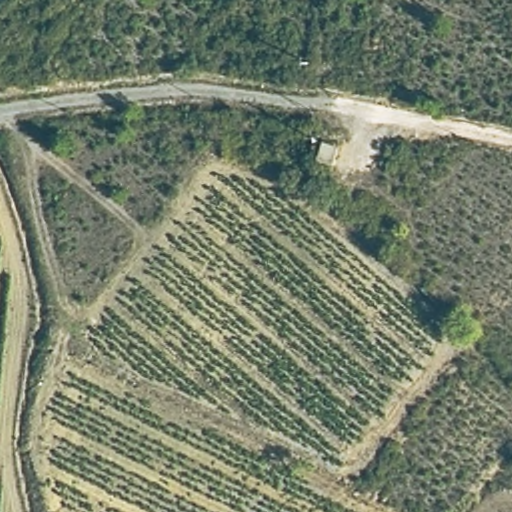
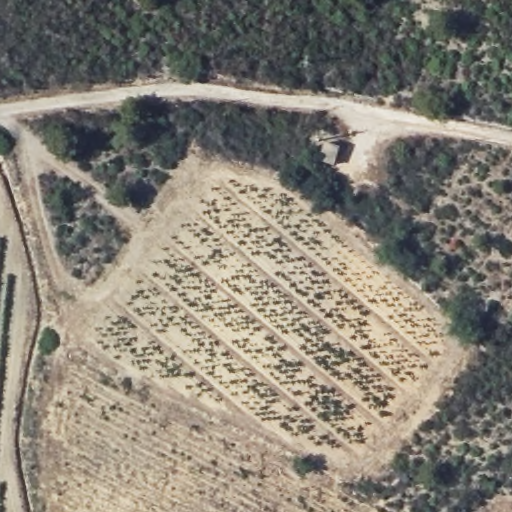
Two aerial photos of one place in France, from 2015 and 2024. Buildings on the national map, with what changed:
unchanged [(327,166),(310,160),(317,132),(335,139),(327,166)]

